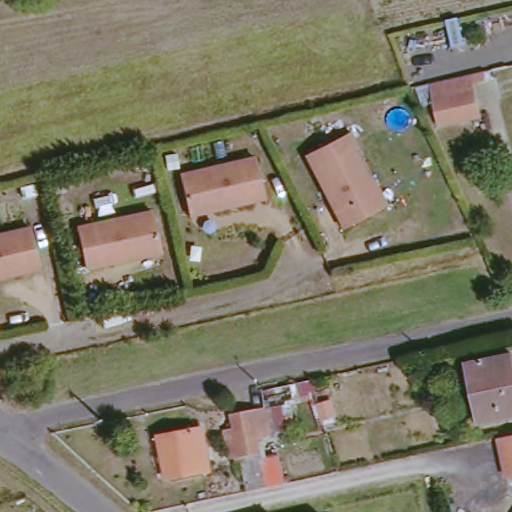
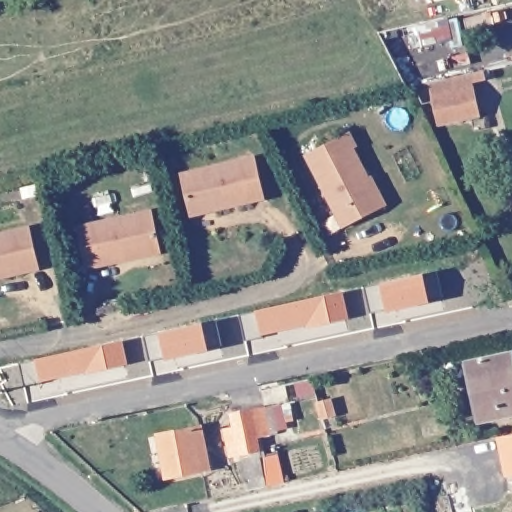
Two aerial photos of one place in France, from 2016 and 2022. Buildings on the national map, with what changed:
unchanged [(446,128),(439,101),(438,93),(477,84),(478,92),(484,120),(446,128)]
unchanged [(397,212),(389,216),(354,234),(316,160),(358,138),(366,153),(361,155),(376,184),(381,182),(397,212)]
unchanged [(194,211),(186,176),(260,159),(269,199),(221,210),(196,216),(194,211)]
unchanged [(141,260),(89,271),(81,231),(157,214),(164,248),(166,254),(141,260)]
unchanged [(34,232),(43,272),(0,283),(0,241),(34,232)]
new [(428,305),(384,312),(379,284),(423,274),(428,305)]
new [(349,320),(247,341),(242,315),(342,292),(349,320)]
new [(148,364),(143,337),(216,320),(222,347),(148,364)]
new [(128,365),(38,385),(34,359),(123,340),(128,365)]
unchanged [(473,364),(512,358),(512,419),(484,424),(473,364)]
unchanged [(284,435),(264,435),(266,453),(272,488),(253,493),(249,458),(236,458),(231,432),(240,425),(236,416),(279,410),(284,435)]
unchanged [(308,428),(295,430),(292,414),(305,412),(308,428)]
unchanged [(214,449),(201,451),(206,474),(176,480),(168,440),(211,431),(214,449)]
unchanged [(497,440),(512,437),(512,479),(504,480),(497,440)]

